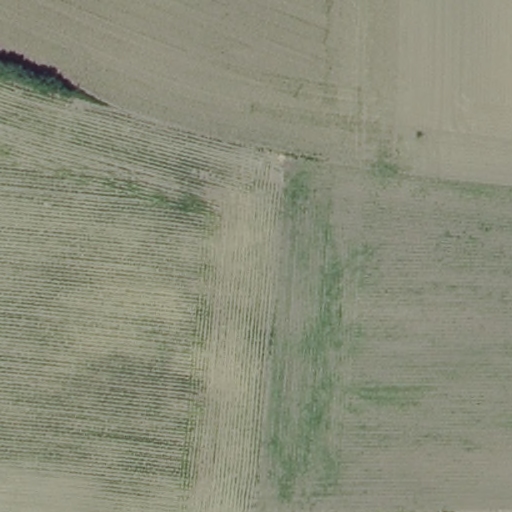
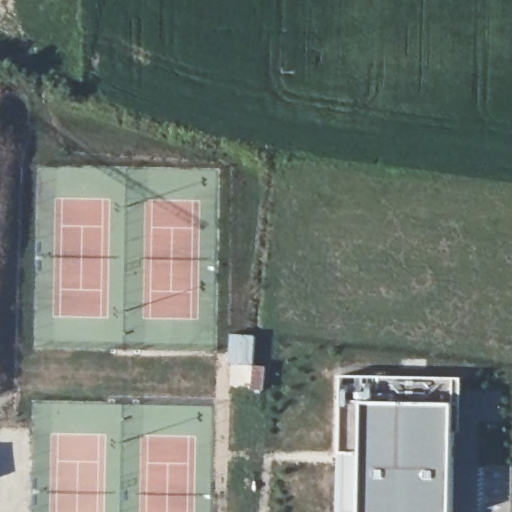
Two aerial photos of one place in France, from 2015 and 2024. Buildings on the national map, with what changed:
new [(462,375),(458,512),(338,512),(338,374),(462,375)]

